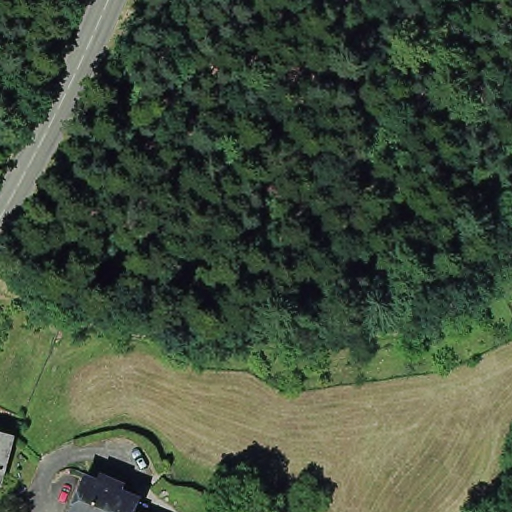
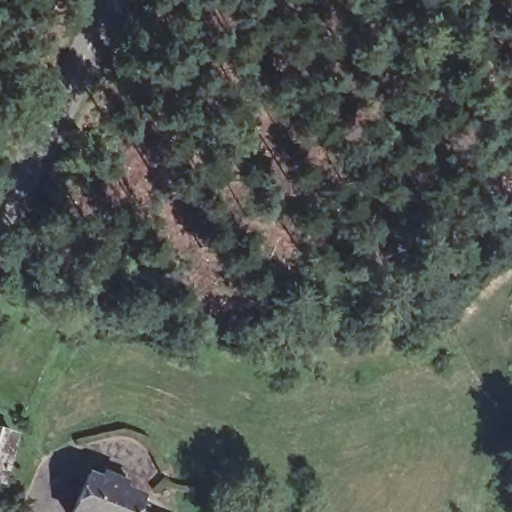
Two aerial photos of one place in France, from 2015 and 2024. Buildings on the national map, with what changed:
unchanged [(15,447),(0,442),(0,429),(19,435),(15,447)]
unchanged [(0,483),(0,442),(15,447),(5,484),(0,483)]
unchanged [(101,487),(104,479),(128,488),(125,496),(140,503),(135,512),(75,512),(86,481),(101,487)]

